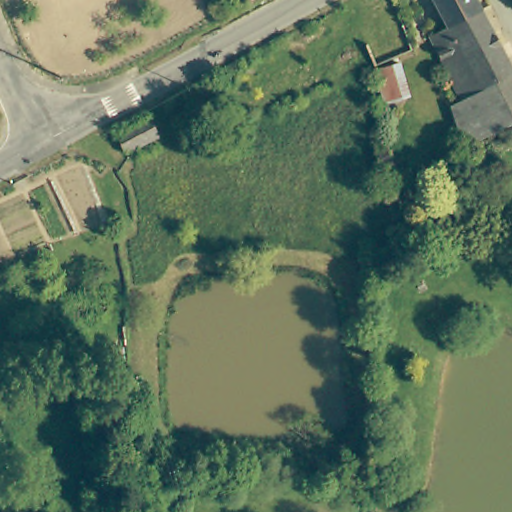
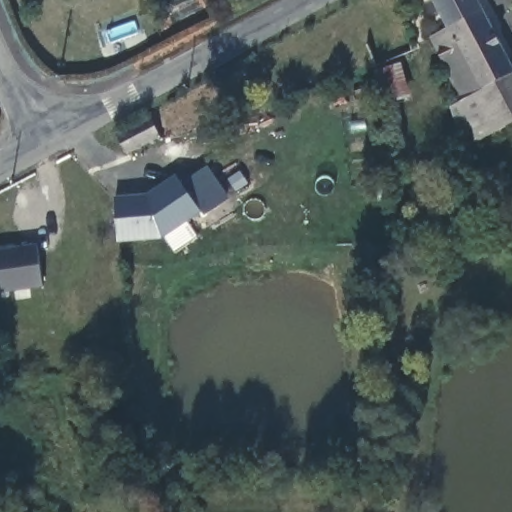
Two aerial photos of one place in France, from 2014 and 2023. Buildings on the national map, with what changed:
unchanged [(512,76),(451,109),(427,41),(443,34),(429,0),(481,0),(512,72),(512,76)]
unchanged [(395,62),(405,95),(388,99),(378,66),(395,62)]
unchanged [(512,124),(465,151),(463,147),(451,109),(512,76),(512,124)]
unchanged [(157,137),(125,154),(116,137),(148,120),(157,137)]
new [(116,202),(152,198),(180,177),(205,214),(167,238),(119,242),(116,202)]
new [(36,243),(42,287),(0,293),(0,250),(36,243)]

